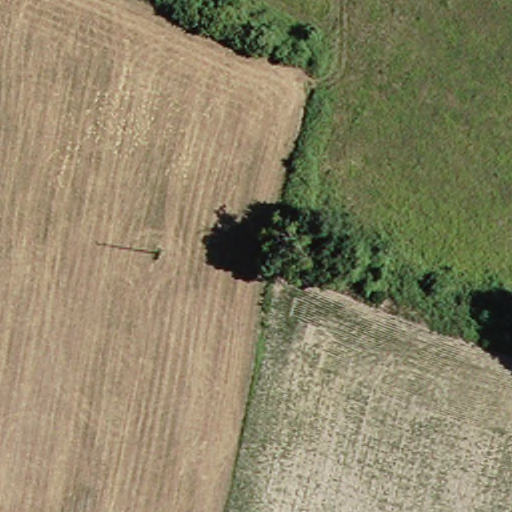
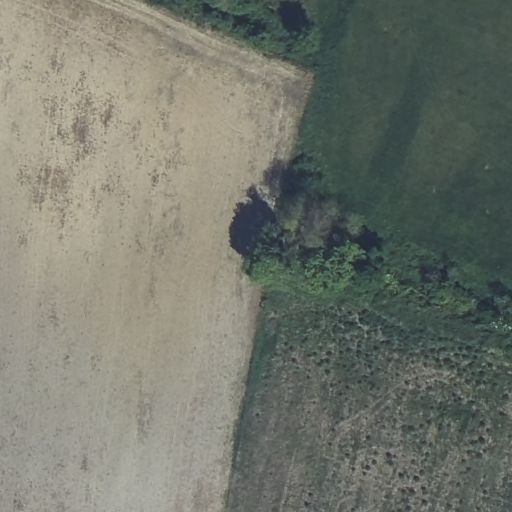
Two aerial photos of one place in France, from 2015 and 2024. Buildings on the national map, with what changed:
[]

